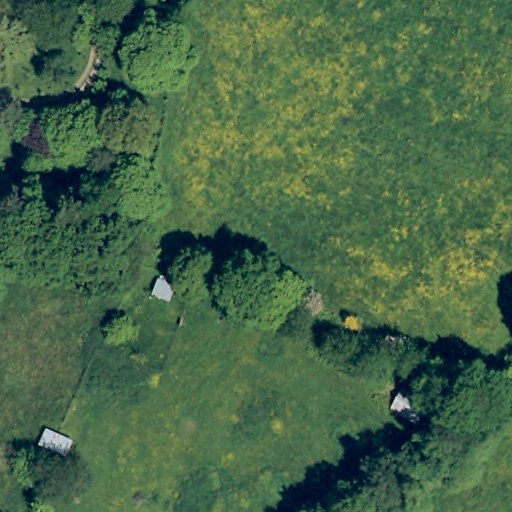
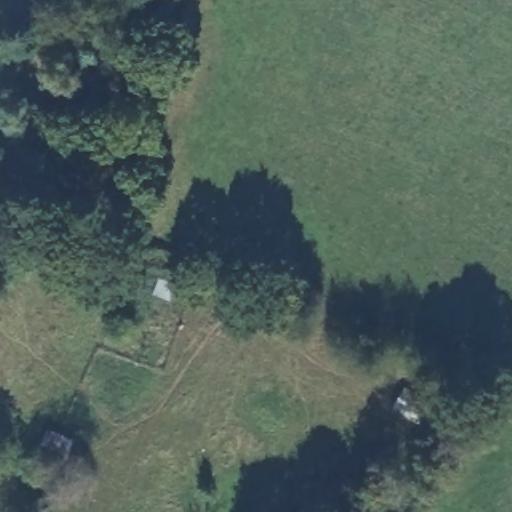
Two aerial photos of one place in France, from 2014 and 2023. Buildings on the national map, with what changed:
unchanged [(17,27),(20,0),(45,0),(38,30),(17,27)]

